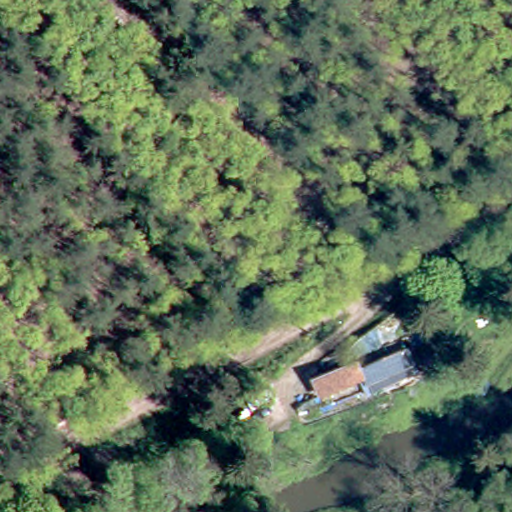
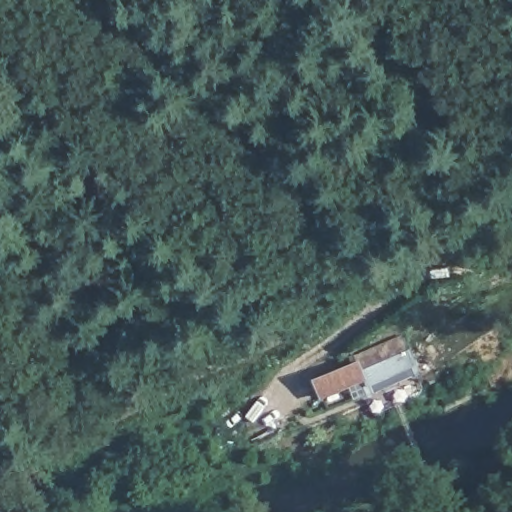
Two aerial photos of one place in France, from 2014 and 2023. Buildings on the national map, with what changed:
unchanged [(351,377),(391,359),(401,380),(361,398),(351,377)]
unchanged [(181,415),(206,471),(133,499),(112,442),(129,435),(181,415)]

